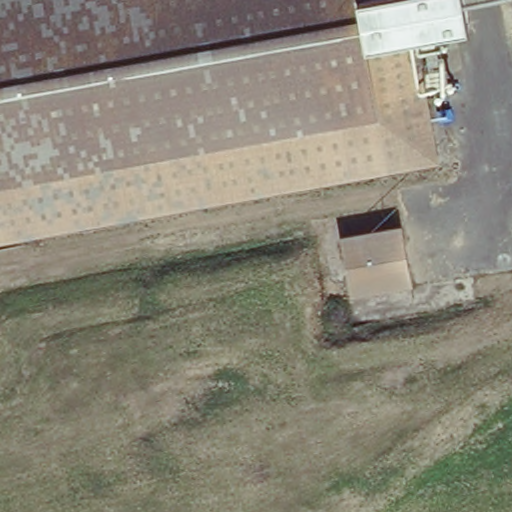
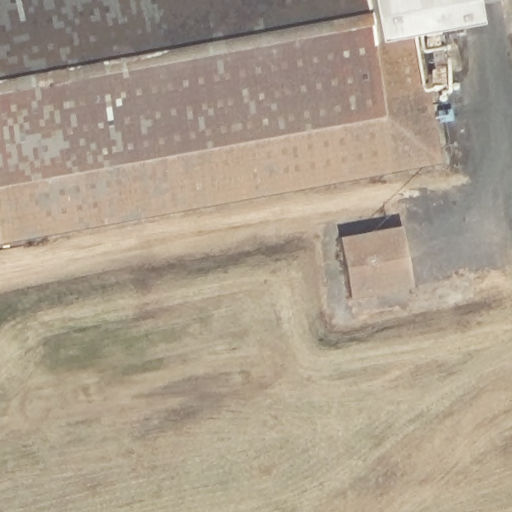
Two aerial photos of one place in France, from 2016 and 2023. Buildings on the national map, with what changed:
unchanged [(0,244),(0,0),(48,0),(78,174),(167,159),(176,211),(28,239),(0,244)]
unchanged [(418,34),(442,161),(176,211),(167,159),(78,174),(48,0),(413,0),(418,34)]
unchanged [(471,25),(418,34),(413,0),(467,0),(471,25)]
unchanged [(356,297),(345,239),(405,227),(416,286),(356,297)]

